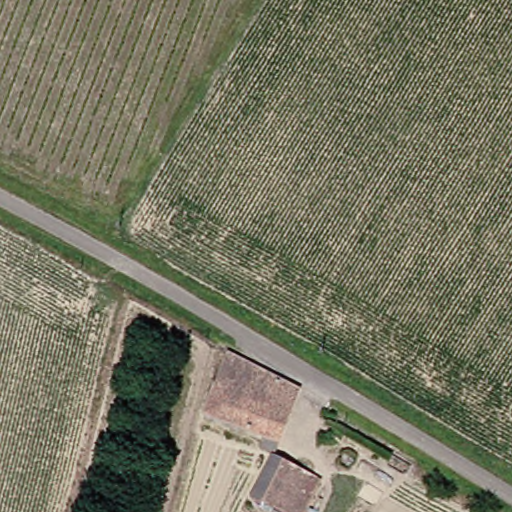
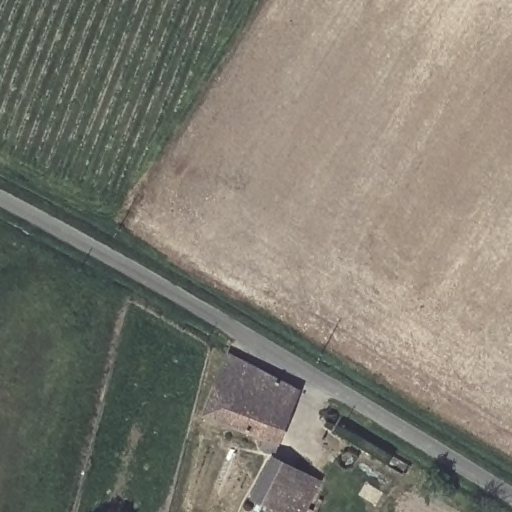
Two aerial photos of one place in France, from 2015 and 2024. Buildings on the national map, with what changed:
unchanged [(265,445),(269,434),(212,409),(237,339),(293,373),(308,382),(282,440),(278,450),(265,445)]
unchanged [(276,457),(321,477),(305,512),(293,512),(258,496),(276,457)]

